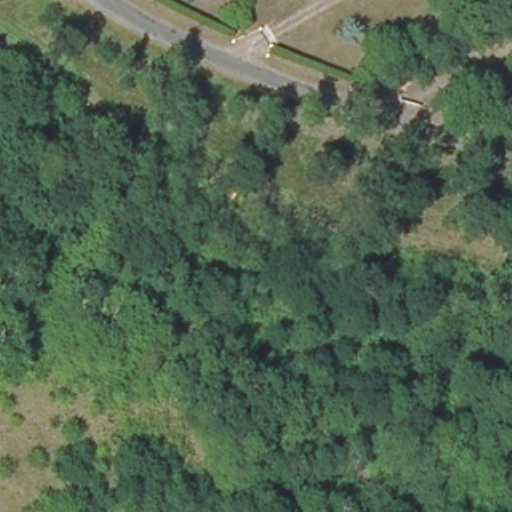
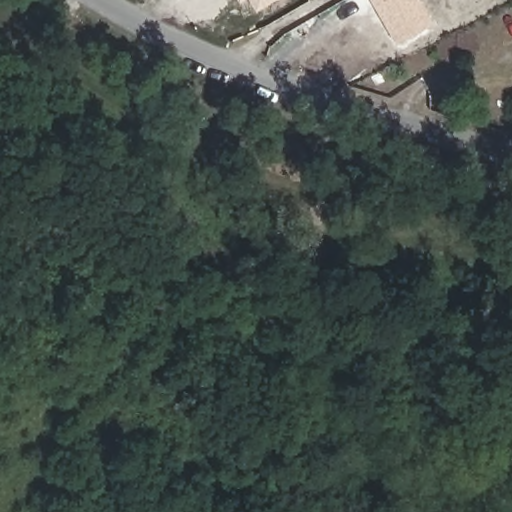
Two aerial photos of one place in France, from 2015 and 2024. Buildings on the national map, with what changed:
new [(237,0),(244,0),(239,3),(237,0)]
new [(249,0),(276,0),(256,11),(249,0)]
new [(420,0),(432,24),(396,45),(370,0),(420,0)]

